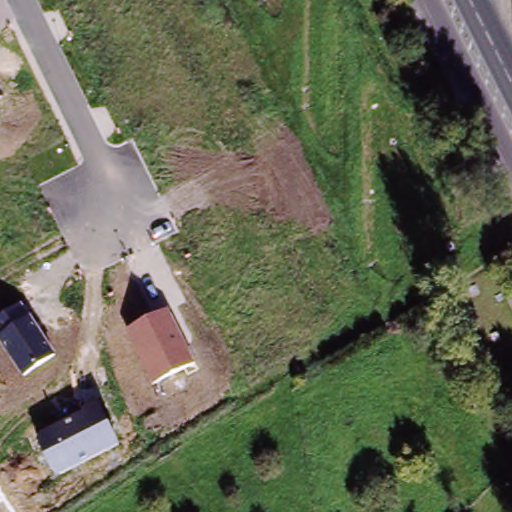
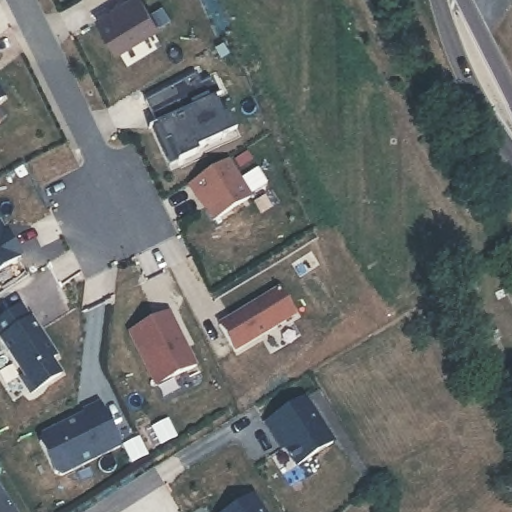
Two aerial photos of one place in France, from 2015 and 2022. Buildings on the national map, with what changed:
new [(126,0),(138,0),(155,27),(113,53),(93,20),(126,0)]
new [(198,87),(210,81),(218,99),(213,101),(221,119),(227,116),(235,132),(194,152),(195,156),(166,168),(150,130),(147,131),(146,130),(154,127),(143,102),(193,77),(198,87)]
unchanged [(0,100),(0,92),(4,97),(0,100)]
new [(225,163),(247,201),(211,222),(197,200),(195,201),(186,186),(225,163)]
new [(19,257),(0,270),(0,229),(2,232),(19,257)]
new [(278,290),(293,316),(234,351),(219,325),(278,290)]
unchanged [(501,297),(512,291),(512,316),(501,297)]
unchanged [(57,357),(23,378),(0,340),(0,318),(25,302),(57,357)]
unchanged [(126,332),(168,312),(195,367),(153,387),(126,332)]
new [(305,398),(332,443),(296,466),(278,437),(275,438),(265,422),(305,398)]
unchanged [(102,408),(120,447),(55,477),(38,437),(102,408)]
new [(165,424),(172,440),(158,447),(150,431),(165,424)]
new [(142,457),(128,464),(120,448),(135,442),(142,457)]
new [(0,512),(0,494),(12,512),(0,512)]
new [(264,512),(225,512),(253,495),(264,512)]

